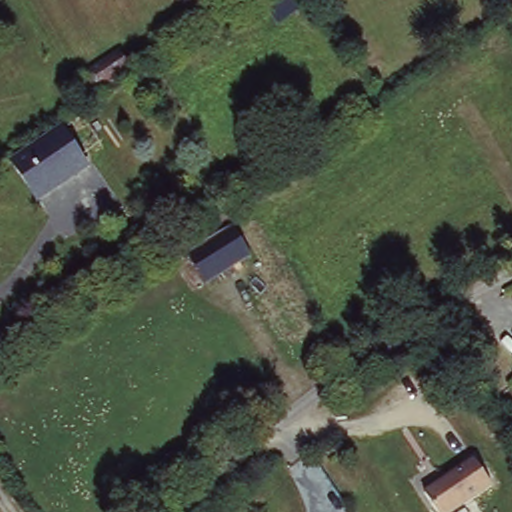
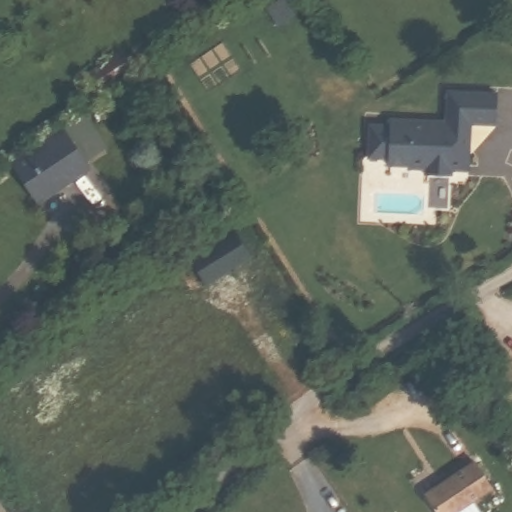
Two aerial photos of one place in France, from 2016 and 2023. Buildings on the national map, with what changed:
new [(284,0),(288,0),(298,15),(287,21),(275,28),(265,11),(277,4),(284,0)]
unchanged [(95,100),(82,77),(123,54),(130,70),(118,78),(123,83),(95,100)]
new [(387,132),(387,125),(444,127),(444,98),(491,100),(490,129),(461,130),(460,150),(466,150),(464,171),(448,171),(448,180),(422,180),(422,174),(404,174),(404,170),(386,169),(386,164),(364,163),(365,131),(387,132)]
unchanged [(37,204),(13,166),(65,131),(90,169),(37,204)]
unchanged [(204,284),(190,258),(235,230),(252,255),(204,284)]
unchanged [(492,489),(459,512),(434,512),(424,498),(474,465),(492,489)]

